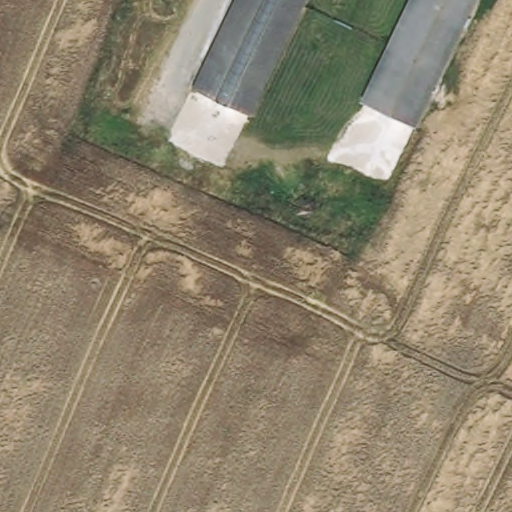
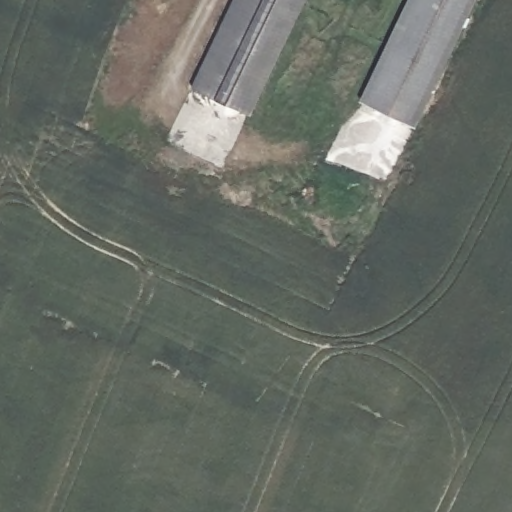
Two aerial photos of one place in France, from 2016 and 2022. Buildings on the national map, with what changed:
unchanged [(199,84),(238,0),(307,0),(255,110),(199,84)]
unchanged [(413,0),(478,0),(397,174),(343,150),(402,24),(413,0)]

